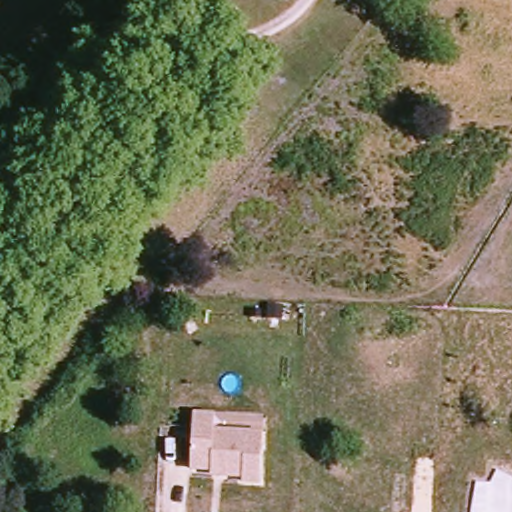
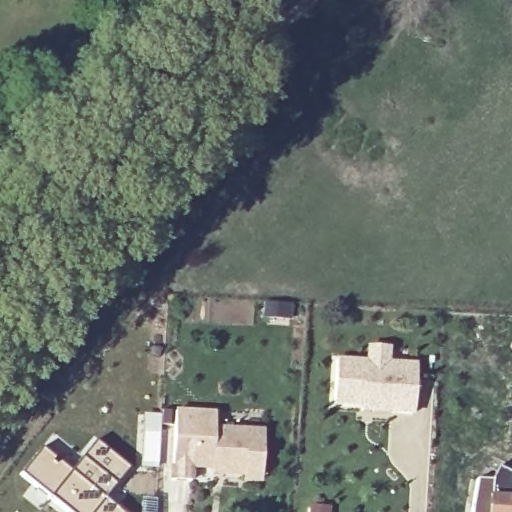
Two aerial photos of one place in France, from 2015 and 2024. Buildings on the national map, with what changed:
new [(335,357),(365,360),(365,346),(390,348),(389,361),(416,363),(412,419),(361,415),(361,408),(331,406),(335,357)]
unchanged [(214,426),(263,429),(261,484),(242,484),(242,476),(210,475),(210,471),(187,471),(192,408),(214,410),(214,426)]
new [(20,497),(29,486),(17,476),(50,435),(79,459),(91,443),(124,470),(101,501),(113,512),(60,512),(44,499),(34,510),(20,497)]
new [(471,512),(476,481),(488,481),(495,468),(512,475),(512,512),(471,512)]

